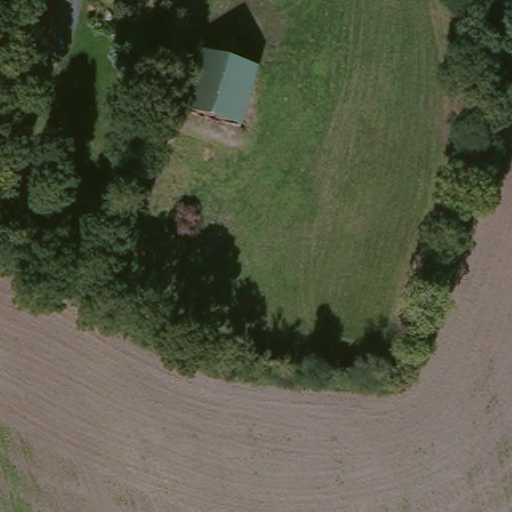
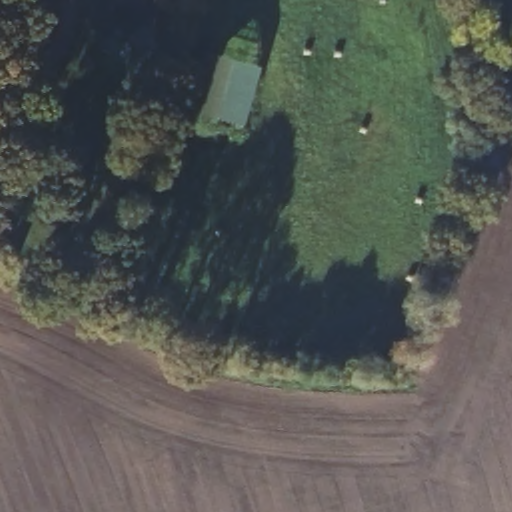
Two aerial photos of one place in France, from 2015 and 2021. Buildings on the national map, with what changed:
unchanged [(212,52),(250,64),(235,117),(197,105),(212,52)]

